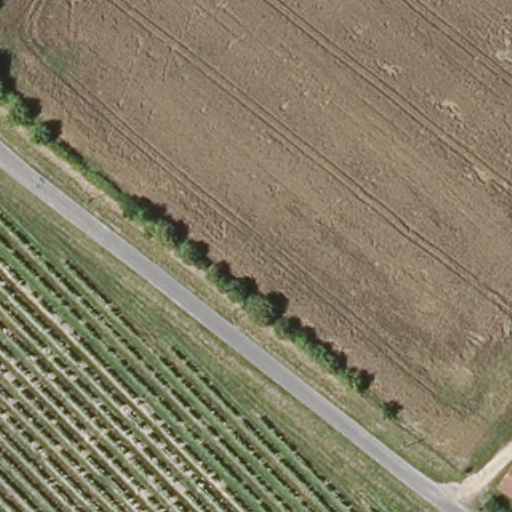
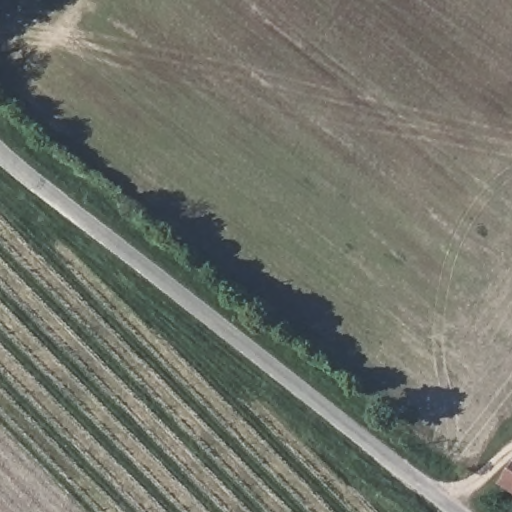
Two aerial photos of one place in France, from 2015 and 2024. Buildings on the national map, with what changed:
unchanged [(512,481),(512,491),(507,488),(512,481)]

